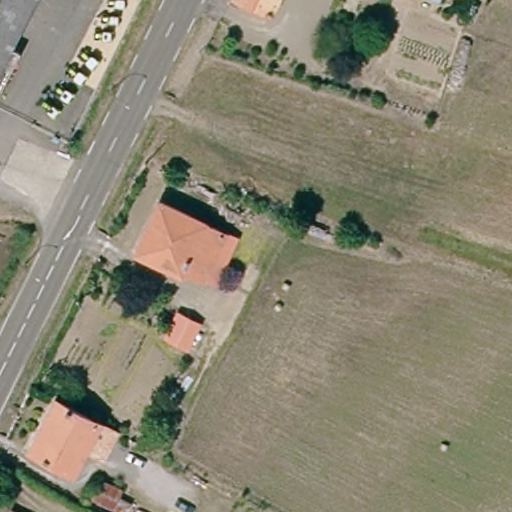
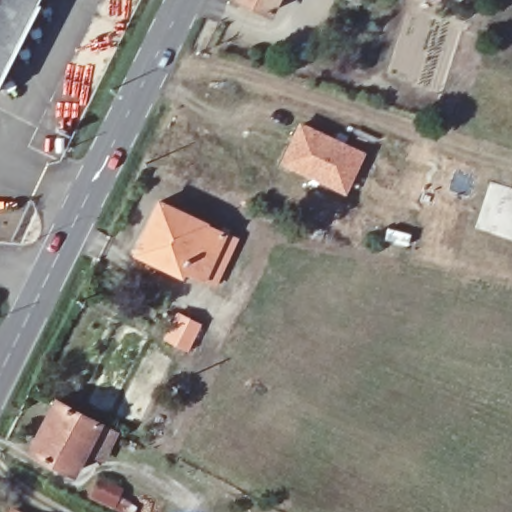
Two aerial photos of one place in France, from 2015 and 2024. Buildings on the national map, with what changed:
unchanged [(19,50),(0,88),(0,0),(34,0),(10,46),(19,50)]
unchanged [(273,0),(267,13),(242,0),(273,0)]
new [(364,153),(344,195),(278,164),(299,121),(364,153)]
new [(512,187),(512,240),(474,227),(491,180),(512,187)]
unchanged [(237,238),(215,284),(184,268),(180,273),(135,251),(158,201),(237,238)]
unchanged [(195,352),(187,347),(167,336),(178,315),(198,325),(206,330),(195,352)]
unchanged [(100,456),(84,448),(71,472),(29,450),(55,400),(98,421),(113,430),(100,456)]
unchanged [(121,489),(113,508),(89,497),(98,479),(121,489)]
unchanged [(9,511),(12,512),(9,512),(9,511)]

